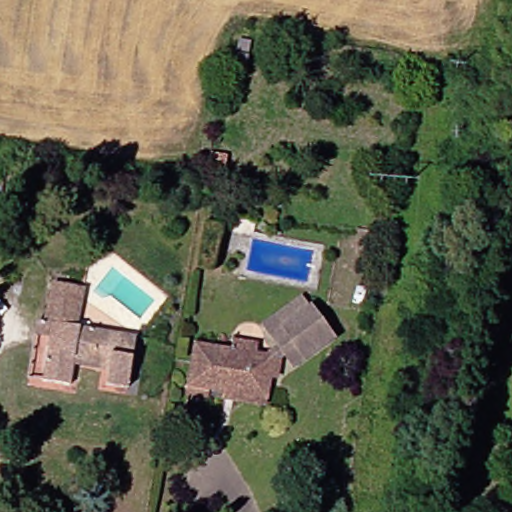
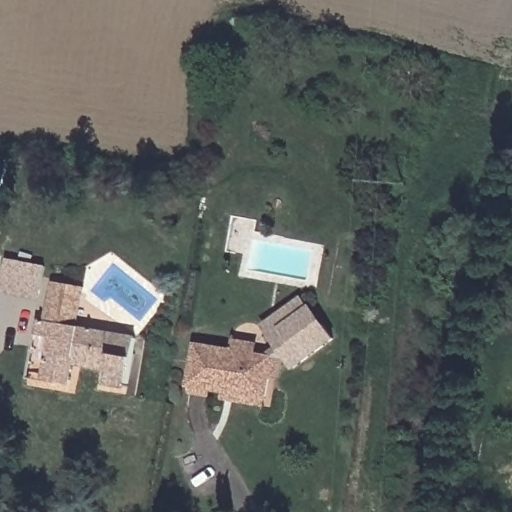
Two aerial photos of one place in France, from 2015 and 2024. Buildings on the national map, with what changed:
new [(0,292),(8,257),(46,265),(38,301),(0,292)]
unchanged [(81,292),(75,331),(126,337),(120,386),(99,383),(101,365),(68,360),(64,388),(37,384),(43,342),(27,340),(30,325),(45,327),(51,287),(81,292)]
unchanged [(290,338),(296,354),(280,361),(267,332),(314,312),(320,325),(290,338)]
unchanged [(335,361),(289,381),(280,361),(296,354),(290,338),(320,325),(335,361)]
unchanged [(180,385),(187,346),(222,353),(225,341),(252,346),(249,359),(265,362),(273,364),(269,382),(261,381),(256,401),(255,412),(216,403),(218,392),(180,385)]

